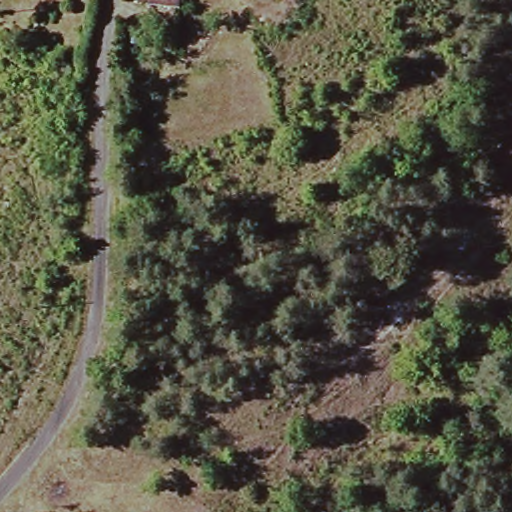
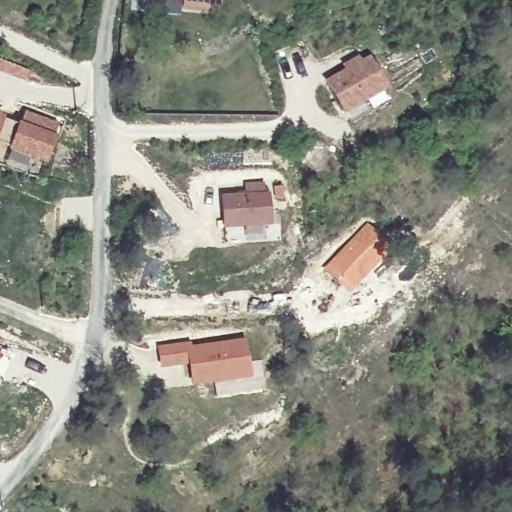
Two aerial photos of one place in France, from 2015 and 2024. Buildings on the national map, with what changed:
new [(341,70),(339,67),(358,56),(361,61),(366,58),(387,93),(381,97),(386,104),(369,115),(364,107),(343,119),(321,84),(341,70)]
new [(33,70),(28,82),(0,72),(0,59),(33,70)]
new [(17,126),(50,139),(41,162),(8,149),(17,126)]
new [(244,193),(244,182),(266,180),(274,227),(223,230),(221,195),(244,193)]
new [(366,223),(393,252),(348,296),(321,269),(366,223)]
new [(190,341),(191,346),(243,340),(249,382),(190,390),(186,368),(159,371),(156,346),(190,341)]

